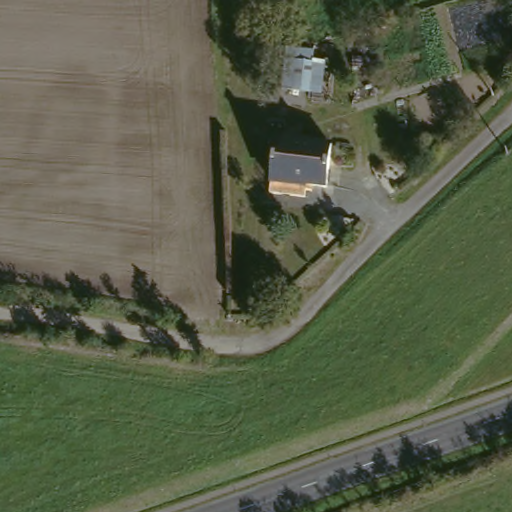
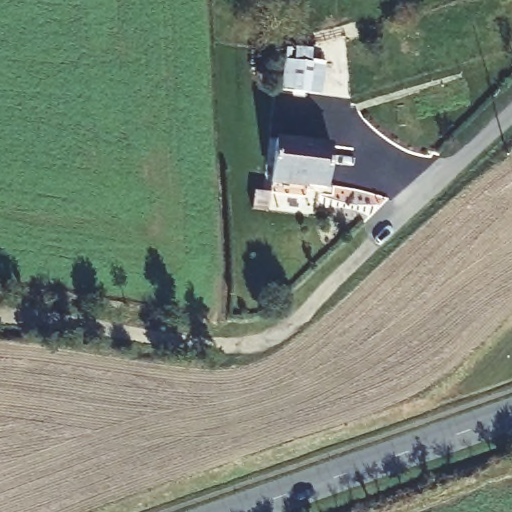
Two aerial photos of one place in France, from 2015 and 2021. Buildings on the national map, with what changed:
unchanged [(282,63),(308,65),(305,93),(279,91),(282,63)]
unchanged [(328,145),(324,187),(269,181),(274,139),(301,142),(328,145)]

